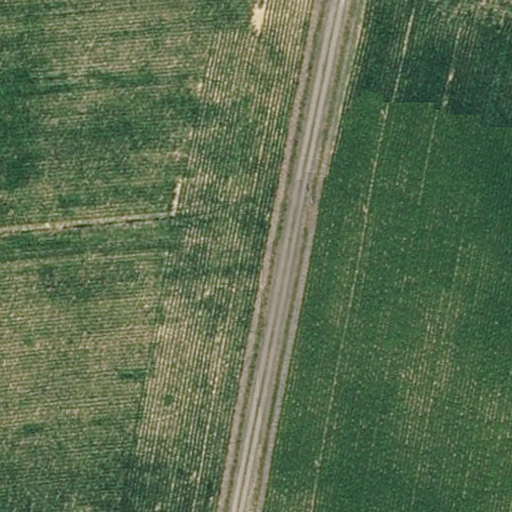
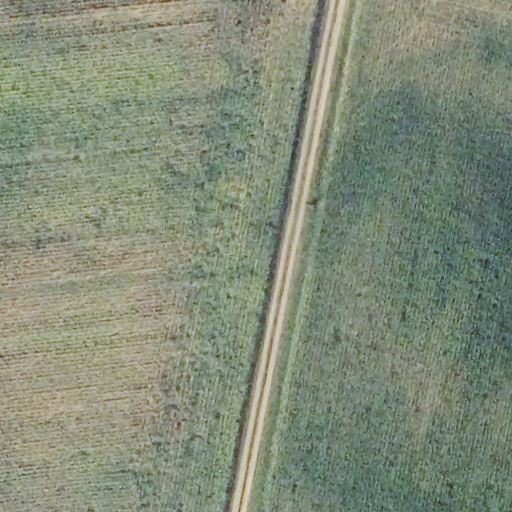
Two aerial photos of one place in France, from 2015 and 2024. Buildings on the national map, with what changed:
[]

